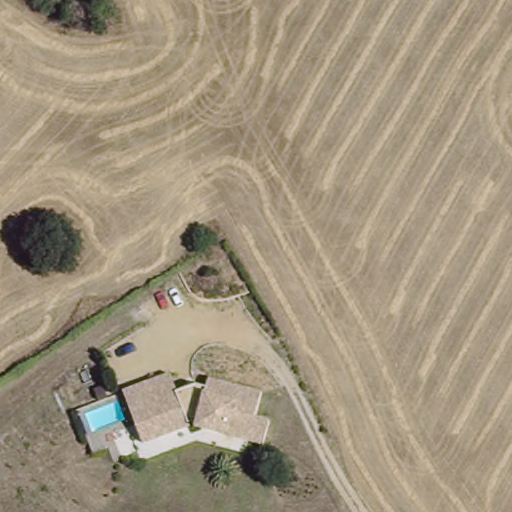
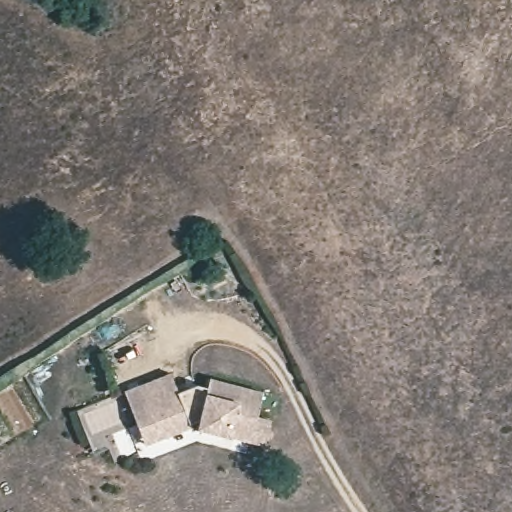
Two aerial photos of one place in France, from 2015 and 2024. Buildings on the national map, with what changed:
unchanged [(168,378),(177,400),(195,393),(203,395),(207,382),(260,394),(254,419),(269,422),(263,446),(247,442),(248,439),(230,435),(229,438),(200,432),(196,423),(188,427),(189,430),(155,442),(143,446),(123,395),(136,391),(168,378)]

